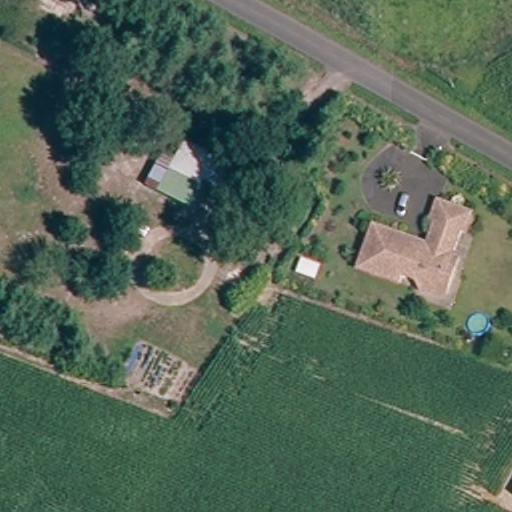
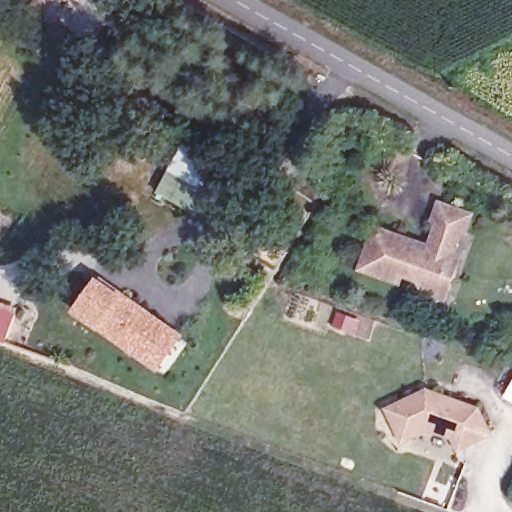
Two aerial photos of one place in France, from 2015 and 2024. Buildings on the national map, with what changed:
unchanged [(76,0),(64,22),(28,0),(76,0)]
unchanged [(171,167),(188,134),(240,154),(224,193),(202,184),(168,171),(171,167)]
unchanged [(191,214),(158,199),(163,189),(151,184),(161,163),(171,167),(168,171),(202,184),(191,214)]
unchanged [(454,278),(447,298),(426,291),(420,279),(404,273),(401,281),(363,268),(377,227),(431,246),(439,220),(434,219),(440,201),(474,213),(468,230),(463,228),(454,254),(462,256),(454,278)]
new [(72,311),(96,276),(124,295),(184,334),(159,373),(96,331),(99,329),(72,311)]
new [(17,311),(6,344),(0,342),(0,306),(17,311)]
new [(512,383),(512,399),(506,395),(512,383)]
new [(384,409),(426,387),(481,406),(495,436),(458,453),(451,439),(430,431),(401,444),(384,409)]

